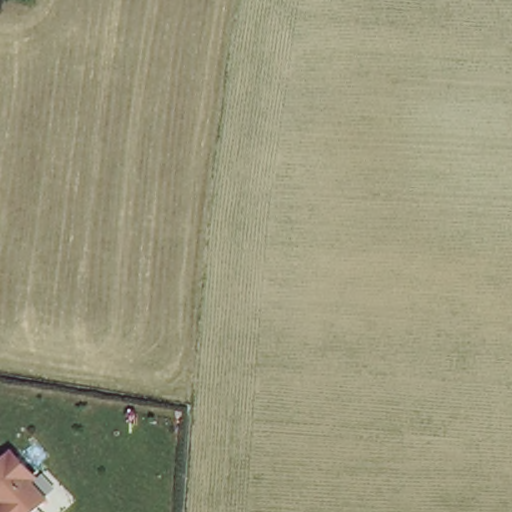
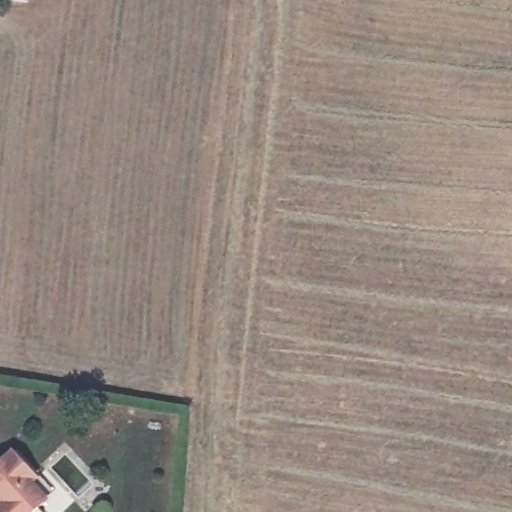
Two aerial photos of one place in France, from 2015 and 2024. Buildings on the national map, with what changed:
unchanged [(32,512),(0,512),(0,458),(15,447),(35,470),(28,473),(47,500),(32,512)]

